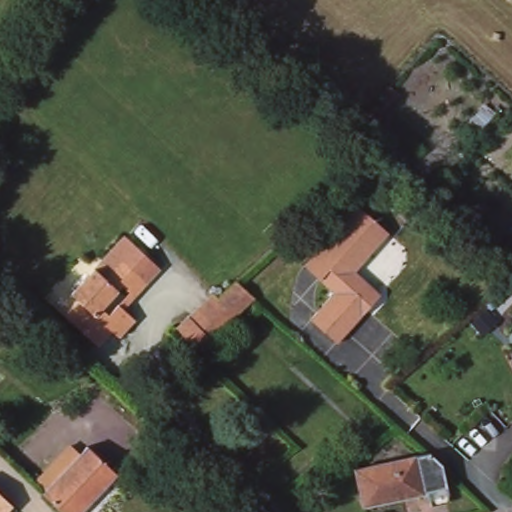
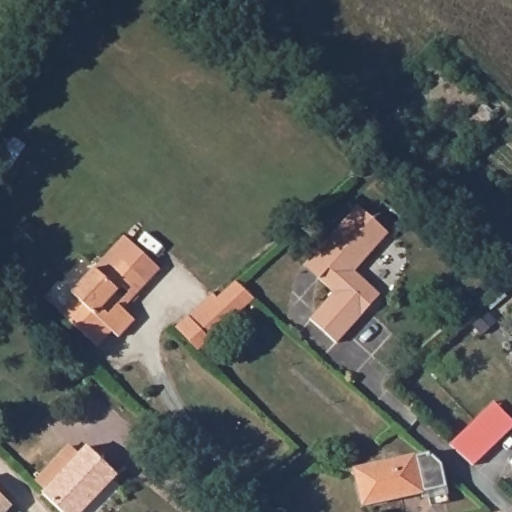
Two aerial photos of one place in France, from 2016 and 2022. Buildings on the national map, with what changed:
unchanged [(387,231),(353,272),(379,297),(339,343),(311,319),(333,293),(317,279),(305,266),(322,247),(357,206),(387,231)]
unchanged [(124,237),(158,266),(146,282),(122,259),(104,279),(95,270),(124,237)]
unchanged [(146,282),(135,296),(123,288),(102,311),(107,316),(119,304),(136,320),(120,338),(114,333),(101,347),(67,318),(80,305),(72,297),(95,270),(104,279),(122,259),(146,282)]
unchanged [(257,299),(199,352),(177,328),(218,292),(222,296),(237,279),(257,299)]
new [(512,421),(512,429),(497,443),(473,465),(450,445),(476,420),(495,401),(512,421)]
unchanged [(86,512),(61,512),(46,498),(34,486),(69,445),(83,457),(87,452),(118,477),(86,512)]
unchanged [(438,495),(356,507),(352,469),(422,458),(433,468),(438,495)]
unchanged [(7,512),(0,512),(0,490),(14,504),(7,512)]

